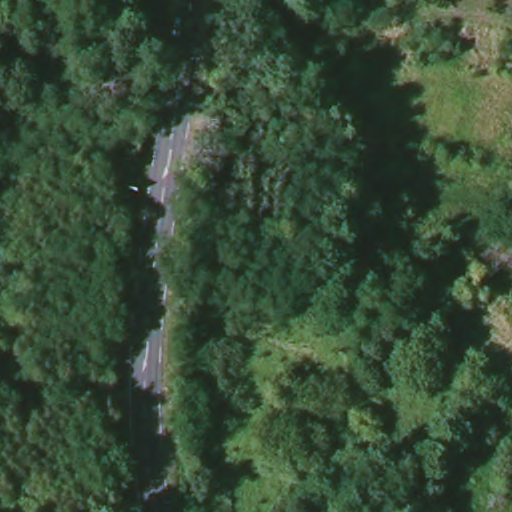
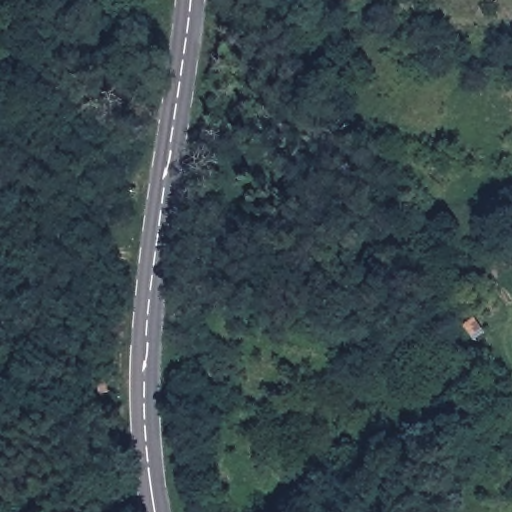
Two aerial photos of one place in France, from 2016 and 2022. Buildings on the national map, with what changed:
unchanged [(130,167),(122,166),(124,149),(146,152),(144,165),(130,167)]
unchanged [(121,406),(103,406),(103,387),(121,387),(120,397),(121,406)]

